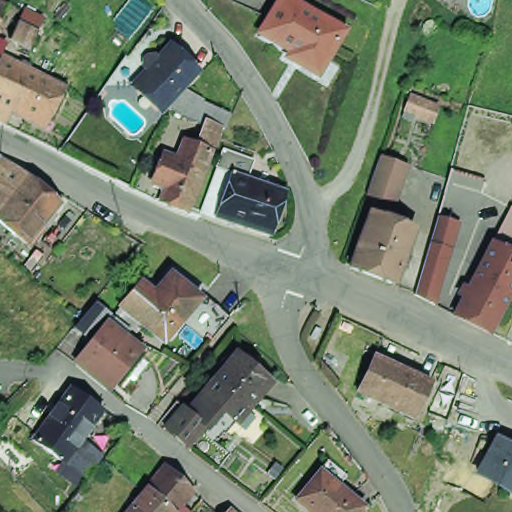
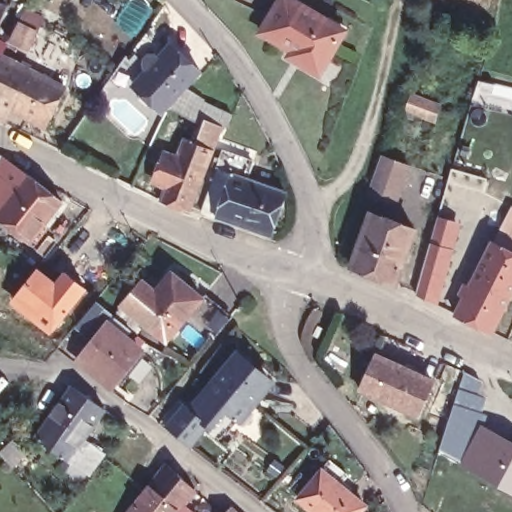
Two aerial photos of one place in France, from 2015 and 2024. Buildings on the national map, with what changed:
unchanged [(281,0),(317,0),(352,21),(327,64),(307,50),(310,46),(268,21),(281,0)]
unchanged [(0,3),(6,5),(0,19),(0,3)]
unchanged [(16,21),(35,30),(28,44),(10,35),(16,21)]
unchanged [(0,50),(0,39),(5,44),(0,50)]
unchanged [(183,90),(167,106),(164,110),(134,82),(145,70),(140,66),(141,60),(146,54),(152,53),(157,57),(169,45),(198,74),(183,90)]
unchanged [(62,86),(42,124),(10,107),(4,121),(0,119),(0,56),(1,55),(62,86)]
unchanged [(202,97),(201,101),(230,112),(223,127),(218,125),(210,146),(191,139),(200,119),(167,106),(183,90),(202,97)]
unchanged [(435,111),(439,113),(433,127),(430,126),(405,115),(410,101),(435,111)]
unchanged [(163,185),(151,180),(152,176),(150,175),(160,150),(171,155),(180,134),(191,139),(210,146),(185,211),(157,199),(163,185)]
unchanged [(243,225),(215,215),(237,154),(265,164),(258,181),(243,225)]
unchanged [(412,165),(400,208),(370,198),(384,155),(412,165)]
unchanged [(0,156),(7,160),(0,171),(0,156)]
unchanged [(63,212),(67,215),(42,249),(0,215),(0,179),(10,161),(70,204),(63,212)]
unchanged [(299,195),(284,240),(243,225),(258,181),(299,195)]
unchanged [(395,283),(350,266),(368,211),(415,228),(395,283)]
unchanged [(495,247),(512,215),(512,256),(495,247)]
unchanged [(462,224),(441,305),(419,296),(440,217),(462,224)]
unchanged [(459,318),(495,247),(512,256),(512,303),(495,336),(459,318)]
new [(37,265),(55,280),(63,268),(87,287),(49,335),(7,302),(37,265)]
unchanged [(77,357),(105,321),(111,315),(120,302),(140,277),(155,290),(170,270),(202,296),(184,318),(167,340),(142,320),(137,325),(140,328),(135,335),(130,341),(137,348),(110,383),(77,357)]
unchanged [(210,340),(184,318),(202,296),(204,294),(230,315),(210,340)]
unchanged [(315,344),(308,340),(314,329),(321,332),(315,344)]
unchanged [(170,421),(163,415),(181,393),(188,400),(197,406),(212,387),(242,348),(273,375),(242,412),(232,425),(230,424),(225,430),(212,420),(210,417),(193,438),(182,430),(170,421)]
unchanged [(358,388),(373,354),(432,381),(417,415),(358,388)]
new [(483,380),(480,394),(487,396),(482,412),(487,414),(482,430),(467,462),(440,448),(465,372),(483,380)]
unchanged [(33,432),(70,380),(103,403),(78,438),(87,445),(92,438),(106,448),(88,471),(67,455),(33,432)]
unchanged [(480,472),(497,438),(512,446),(512,489),(480,472)]
unchanged [(200,489),(178,512),(152,512),(137,498),(170,462),(200,489)]
unchanged [(321,512),(297,492),(322,463),(363,498),(352,512),(321,512)]
unchanged [(125,512),(137,498),(152,512),(125,512)]
unchanged [(232,512),(237,507),(243,512),(232,512)]

